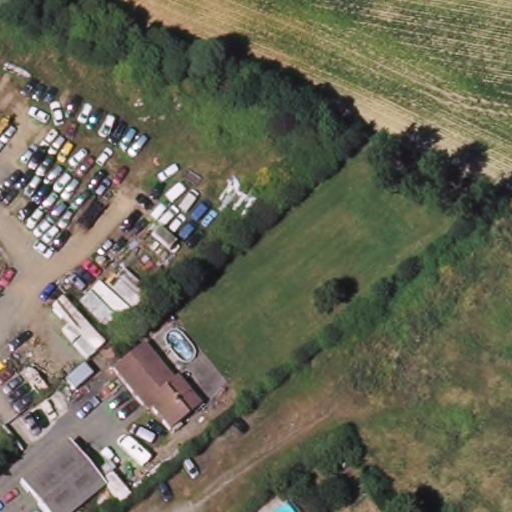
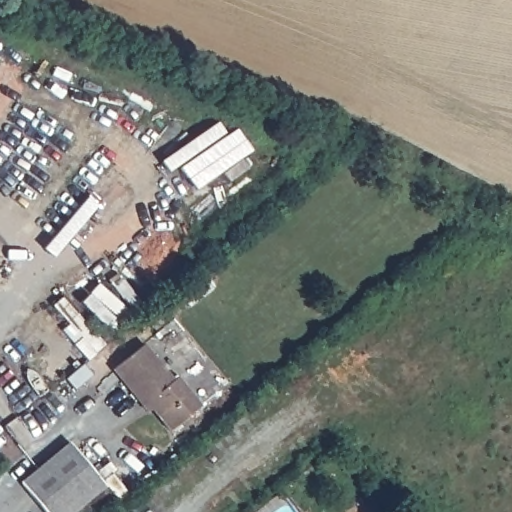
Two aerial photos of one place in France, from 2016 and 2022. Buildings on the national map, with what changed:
unchanged [(146,344),(174,378),(178,375),(202,405),(171,429),(148,401),(143,404),(116,369),(146,344)]
unchanged [(70,445),(105,488),(74,512),(41,512),(19,485),(70,445)]

